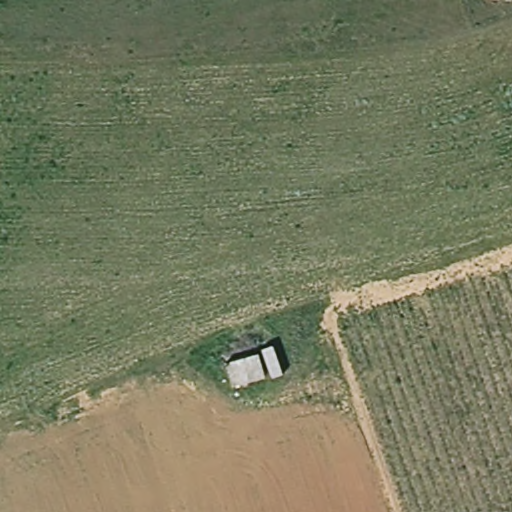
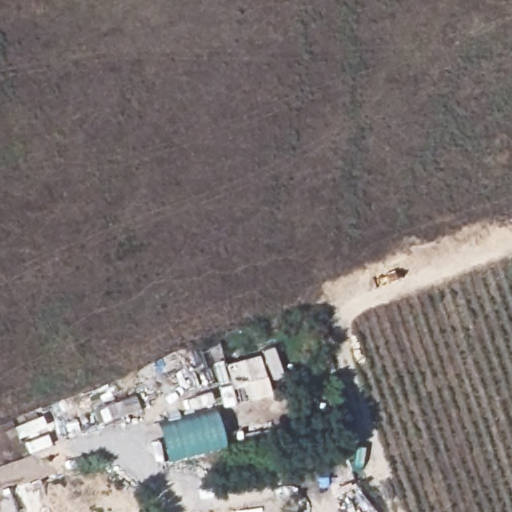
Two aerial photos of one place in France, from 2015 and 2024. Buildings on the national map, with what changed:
unchanged [(263,375),(233,386),(225,364),(255,354),(263,375)]
new [(139,408),(97,422),(92,409),(135,394),(139,408)]
new [(216,411),(226,444),(167,459),(158,426),(216,411)]

